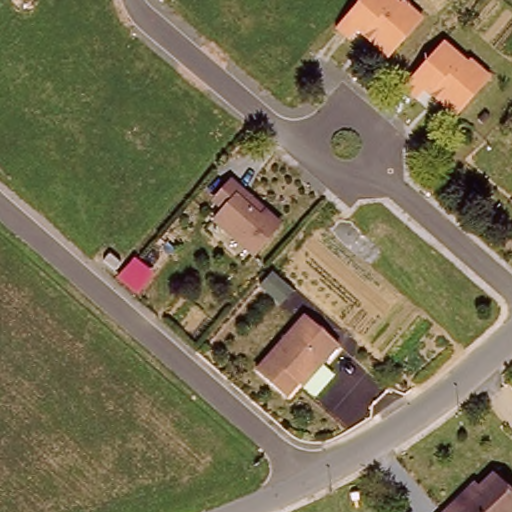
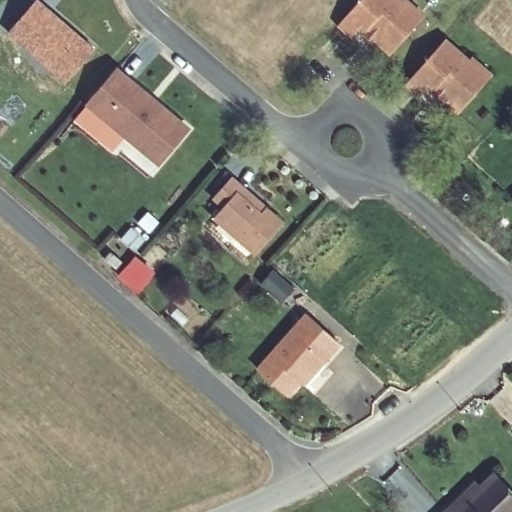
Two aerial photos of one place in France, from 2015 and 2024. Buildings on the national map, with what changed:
new [(41,0),(95,49),(62,84),(5,35),(35,0),(41,0)]
unchanged [(390,54),(375,41),(377,39),(362,25),(354,36),(340,23),(360,0),(402,0),(409,0),(419,9),(425,14),(409,32),(390,54)]
unchanged [(474,95),(455,117),(439,103),(442,99),(426,86),(415,96),(405,86),(414,75),(444,41),(467,61),(470,58),(484,72),(490,78),(474,95)]
new [(159,167),(85,106),(118,66),(190,128),(159,167)]
unchanged [(253,255),(214,221),(224,210),(214,201),(231,182),(280,225),(253,255)]
unchanged [(115,276),(104,266),(111,257),(124,267),(115,276)]
unchanged [(137,297),(119,283),(137,262),(152,276),(137,297)]
unchanged [(299,389),(287,402),(257,376),(307,322),(340,351),(313,381),(302,392),(299,389)]
unchanged [(512,496),(512,512),(449,512),(477,487),(480,491),(495,478),(512,496)]

